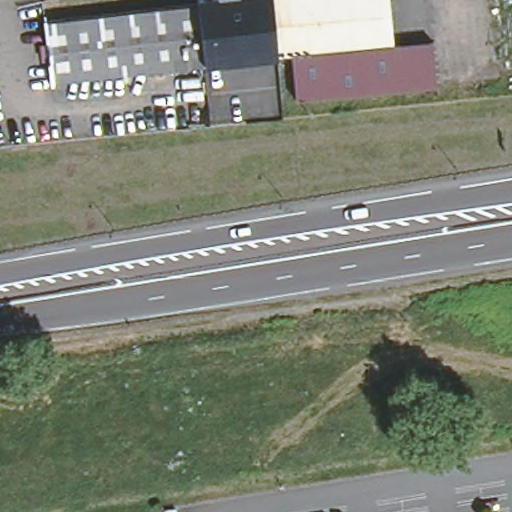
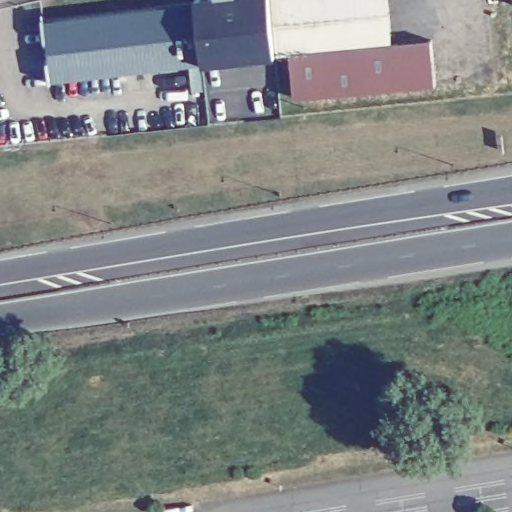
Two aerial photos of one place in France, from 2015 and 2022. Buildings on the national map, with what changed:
unchanged [(201,62),(50,78),(44,16),(196,0),(201,62)]
unchanged [(275,50),(276,53),(201,62),(196,0),(272,0),(275,50)]
unchanged [(272,0),(386,0),(390,40),(290,49),(275,50),(272,0)]
unchanged [(390,40),(431,36),(435,83),(295,95),(290,49),(390,40)]

